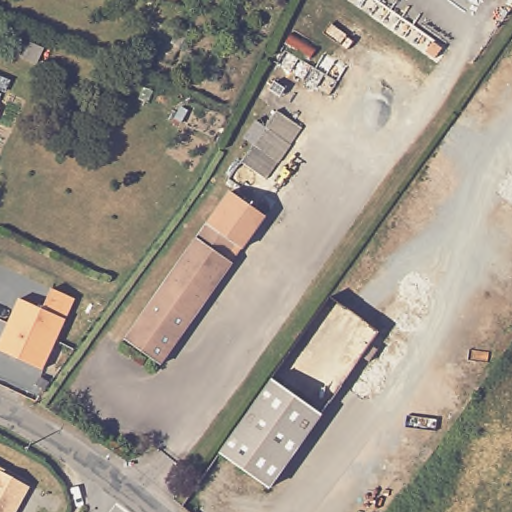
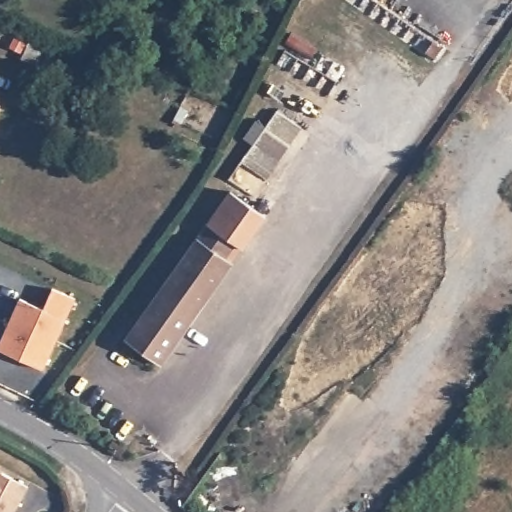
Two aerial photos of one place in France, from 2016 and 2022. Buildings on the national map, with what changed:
unchanged [(116,338),(221,190),(255,214),(234,246),(223,260),(151,362),(116,338)]
unchanged [(65,316),(43,366),(0,347),(0,342),(20,297),(65,316)]
demolished [(269,485),(220,450),(272,377),(321,411),(269,485)]
unchanged [(12,512),(0,512),(0,467),(28,482),(12,512)]

